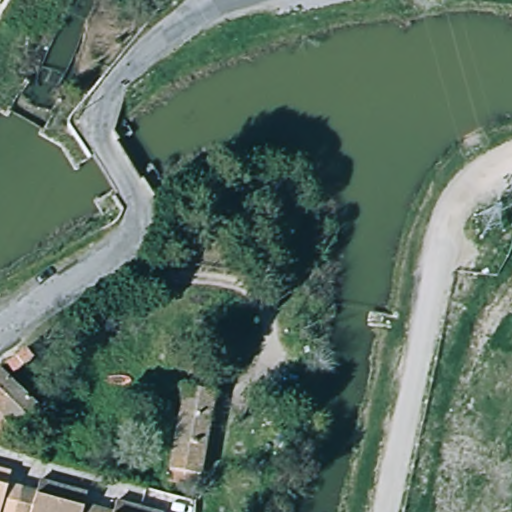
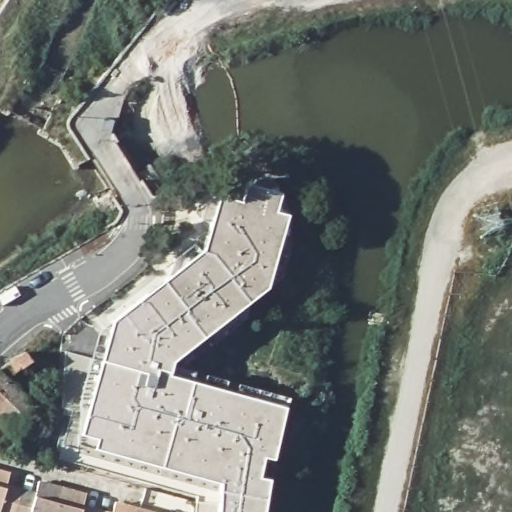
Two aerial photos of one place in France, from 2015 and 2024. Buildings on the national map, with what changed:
new [(240,202),(245,185),(279,195),(274,212),(287,216),(266,289),(172,362),(168,376),(284,408),(273,460),(263,458),(258,479),(269,480),(263,512),(218,512),(220,485),(94,450),(97,440),(81,436),(101,360),(112,322),(203,251),(218,196),(240,202)]
unchanged [(31,355),(36,361),(17,375),(10,365),(29,352),(31,355)]
new [(196,497),(59,460),(71,417),(64,415),(65,410),(62,408),(65,352),(101,360),(81,436),(97,440),(94,450),(220,485),(218,512),(195,512),(196,497)]
unchanged [(42,405),(21,426),(20,425),(4,442),(0,439),(0,369),(3,366),(42,405)]
demolished [(190,384),(219,390),(201,483),(172,478),(190,384)]
unchanged [(15,512),(0,512),(0,471),(10,474),(6,488),(20,492),(15,512)]
unchanged [(20,492),(35,496),(39,482),(86,495),(82,510),(91,512),(15,512),(20,492)]
new [(116,502),(151,512),(113,512),(116,502)]
demolished [(115,503),(146,512),(113,512),(115,503)]
new [(82,510),(84,504),(110,512),(91,512),(82,510)]

